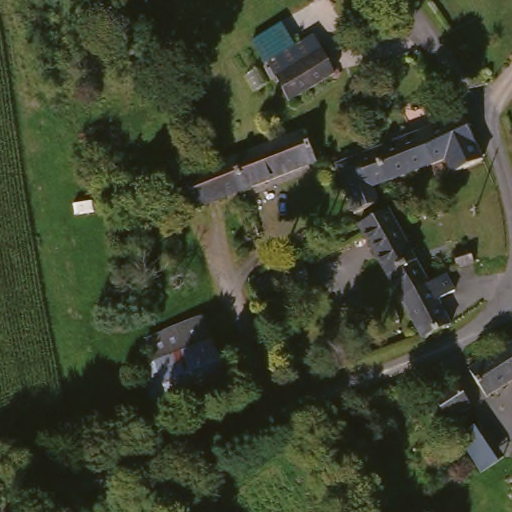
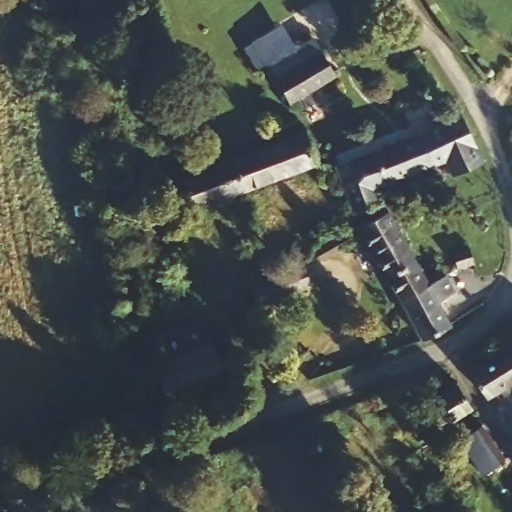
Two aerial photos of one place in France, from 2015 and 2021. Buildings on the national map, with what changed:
unchanged [(289,105),(273,79),(267,70),(314,39),(319,47),(338,74),(289,105)]
unchanged [(443,174),(437,158),(434,160),(418,126),(424,123),(434,119),(454,110),(468,144),(475,160),(443,174)]
unchanged [(314,172),(311,161),(282,174),(267,138),(304,121),(320,156),(326,167),(314,172)]
unchanged [(354,212),(346,196),(329,164),(376,144),(418,126),(434,160),(391,177),(372,186),(364,190),(371,205),(354,212)]
unchanged [(222,201),(199,211),(184,177),(204,167),(219,161),(267,138),(282,174),(222,201)]
unchanged [(360,222),(389,207),(431,286),(401,300),(366,231),(360,222)]
unchanged [(477,249),(482,265),(463,272),(457,255),(477,249)]
unchanged [(264,280),(303,260),(314,280),(262,306),(253,287),(264,280)]
unchanged [(447,278),(457,300),(442,307),(451,326),(421,340),(404,307),(401,300),(431,286),(447,278)]
unchanged [(139,327),(197,302),(207,323),(149,349),(139,327)]
unchanged [(149,349),(207,323),(228,369),(149,404),(128,357),(149,349)]
unchanged [(497,353),(512,344),(512,383),(485,399),(469,371),(497,353)]
unchanged [(447,418),(442,422),(428,401),(431,397),(458,382),(470,405),(447,418)]
unchanged [(464,430),(481,419),(504,456),(500,458),(479,471),(456,434),(464,430)]

